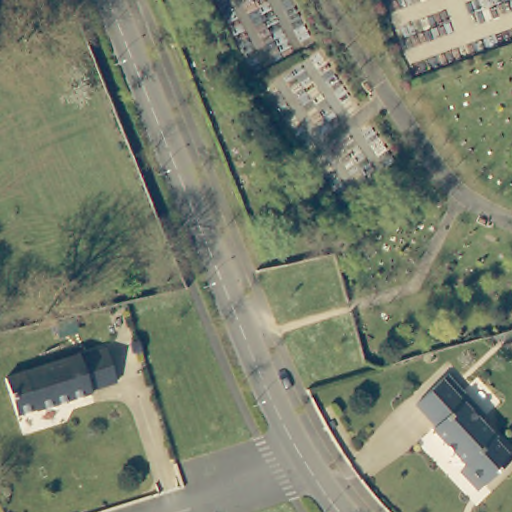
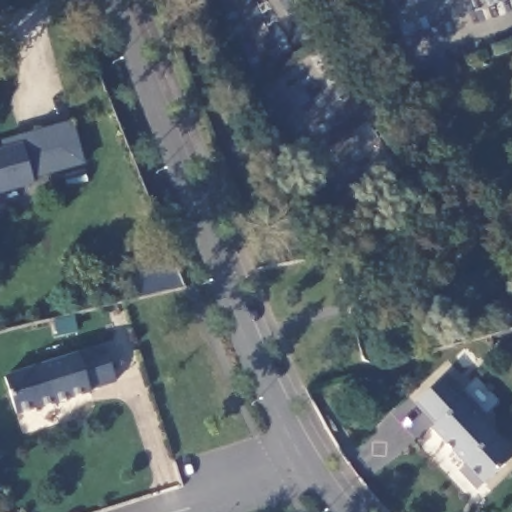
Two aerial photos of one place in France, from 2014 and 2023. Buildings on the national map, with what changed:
new [(34,179),(35,185),(0,194),(0,148),(3,147),(1,140),(72,120),(85,165),(34,179)]
unchanged [(0,320),(16,316),(18,325),(1,330),(0,326),(0,320)]
unchanged [(116,380),(90,390),(90,391),(36,410),(36,408),(17,415),(5,378),(78,353),(78,357),(104,347),(116,380)]
unchanged [(487,417),(481,422),(496,440),(494,441),(512,462),(475,493),(458,473),(465,467),(431,428),(435,425),(415,402),(449,373),(487,417)]

